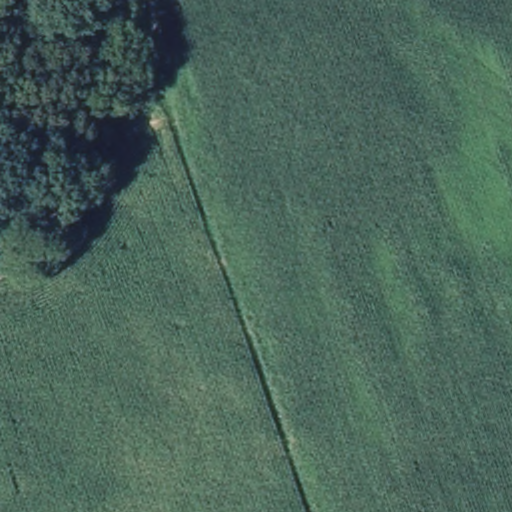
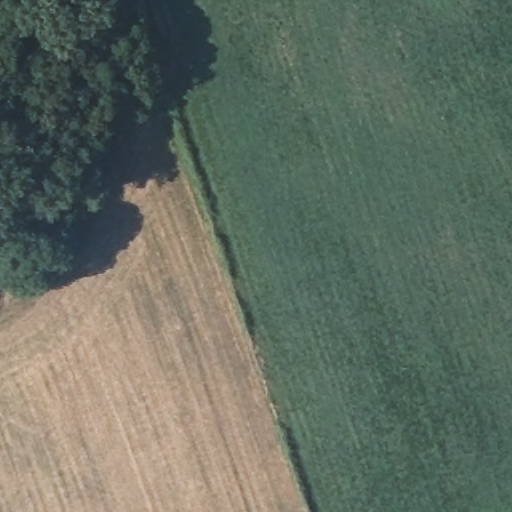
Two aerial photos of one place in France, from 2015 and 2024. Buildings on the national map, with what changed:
[]

